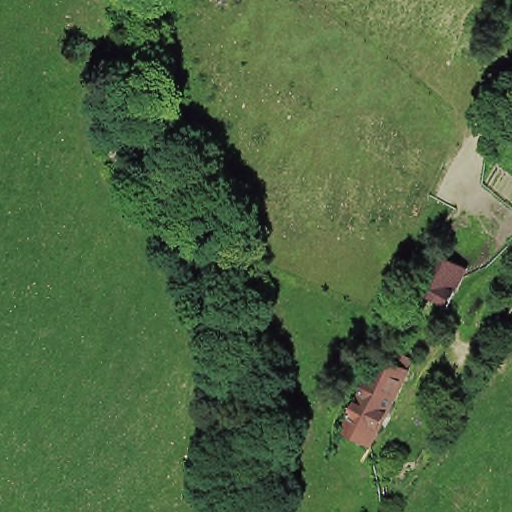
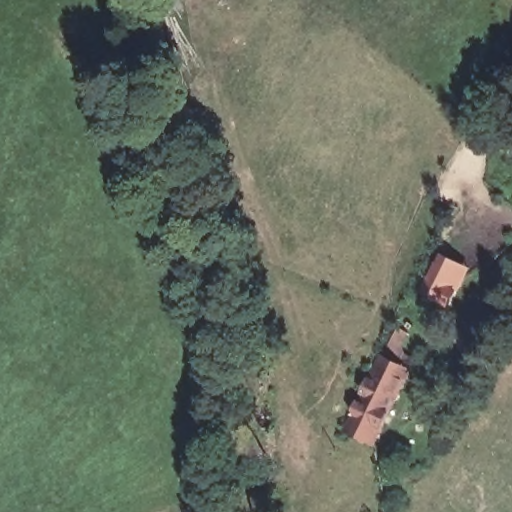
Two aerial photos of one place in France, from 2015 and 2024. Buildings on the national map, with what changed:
unchanged [(449,301),(422,287),(442,246),(456,254),(447,272),(461,280),(449,301)]
unchanged [(372,440),(340,424),(380,349),(410,364),(372,440)]

